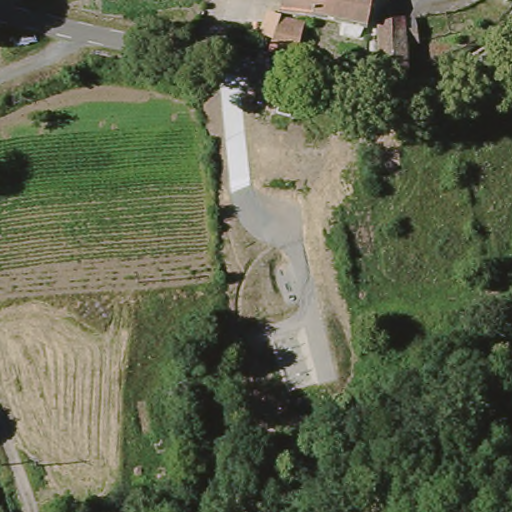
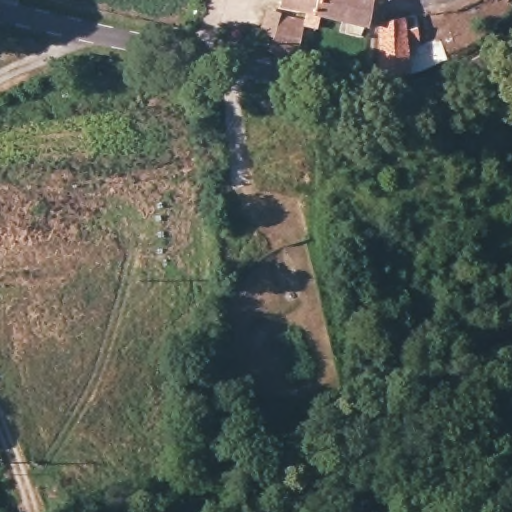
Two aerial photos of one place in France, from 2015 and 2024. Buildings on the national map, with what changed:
unchanged [(360,34),(312,11),(280,6),(282,0),(365,0),(367,1),(367,5),(360,34)]
unchanged [(318,18),(303,53),(281,49),(295,14),(318,18)]
unchanged [(397,78),(388,77),(380,74),(384,21),(407,23),(407,31),(405,78),(397,78)]

